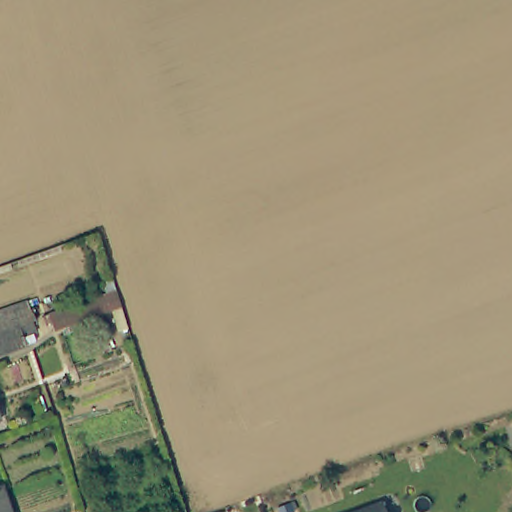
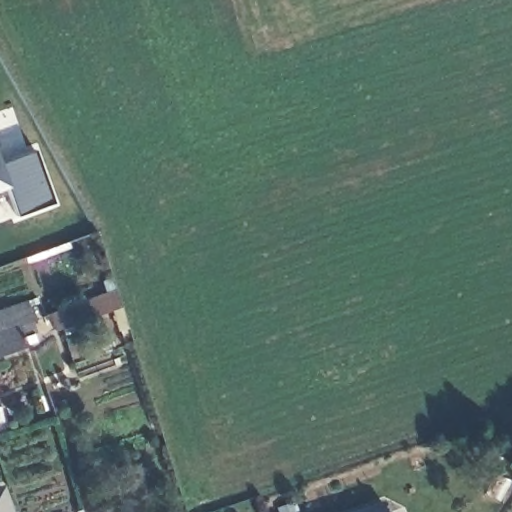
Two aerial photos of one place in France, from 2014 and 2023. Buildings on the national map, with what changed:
new [(18,214),(9,187),(0,190),(0,155),(2,159),(34,147),(53,202),(18,214)]
unchanged [(119,330),(113,308),(54,329),(49,313),(116,289),(122,305),(129,327),(119,330)]
unchanged [(21,339),(21,341),(0,348),(0,304),(23,295),(30,314),(25,316),(29,328),(28,328),(31,336),(21,339)]
unchanged [(9,512),(0,512),(0,488),(1,488),(9,512)]
unchanged [(385,512),(354,512),(382,502),(385,512)]

